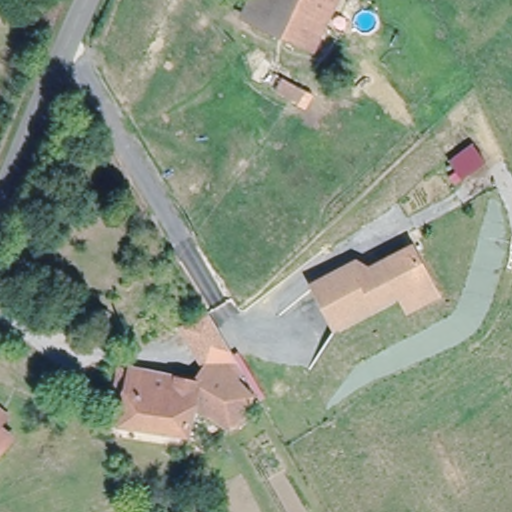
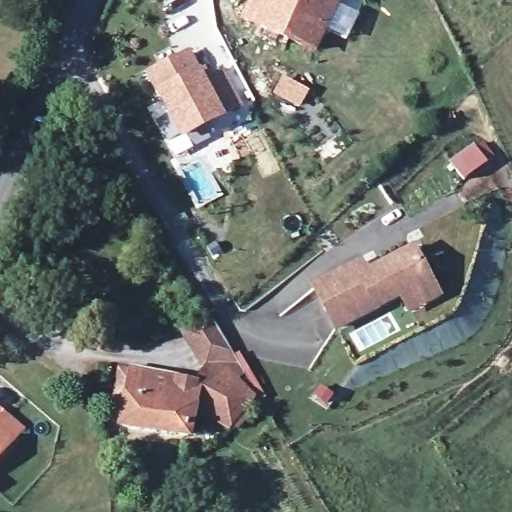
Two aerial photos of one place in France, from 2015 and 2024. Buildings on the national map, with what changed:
unchanged [(247,17),(256,0),(338,0),(316,50),(247,17)]
new [(200,67),(205,64),(212,76),(224,69),(244,106),(224,118),(182,141),(157,91),(147,71),(190,48),(200,67)]
demolished [(268,85),(258,78),(267,66),(276,72),(268,85)]
unchanged [(310,93),(302,107),(283,96),(290,80),(310,93)]
unchanged [(489,173),(466,189),(454,172),(477,156),(489,173)]
unchanged [(442,299),(413,314),(406,301),(400,299),(340,330),(318,288),(360,265),(367,279),(376,274),(375,272),(417,250),(433,285),(442,299)]
unchanged [(202,389),(196,387),(202,371),(182,350),(195,336),(254,402),(228,432),(199,405),(202,389)]
unchanged [(196,387),(202,389),(199,405),(191,439),(120,423),(131,372),(196,387)]
unchanged [(0,443),(0,425),(8,434),(0,443)]

